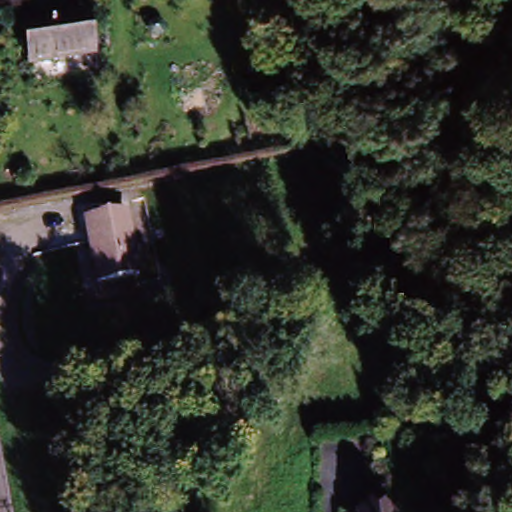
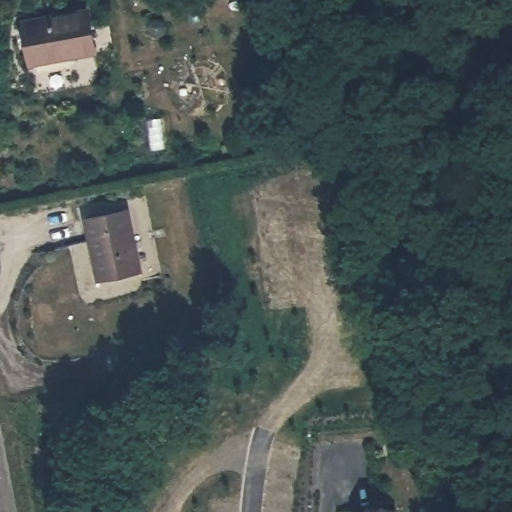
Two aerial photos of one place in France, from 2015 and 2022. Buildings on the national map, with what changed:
unchanged [(94,19),(99,59),(37,69),(30,30),(94,19)]
unchanged [(82,222),(130,211),(145,274),(96,284),(82,222)]

